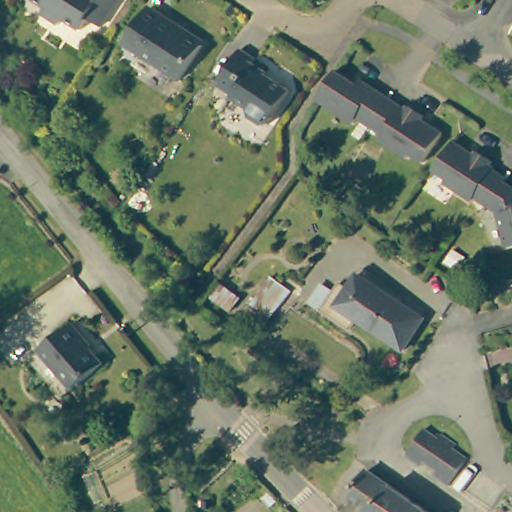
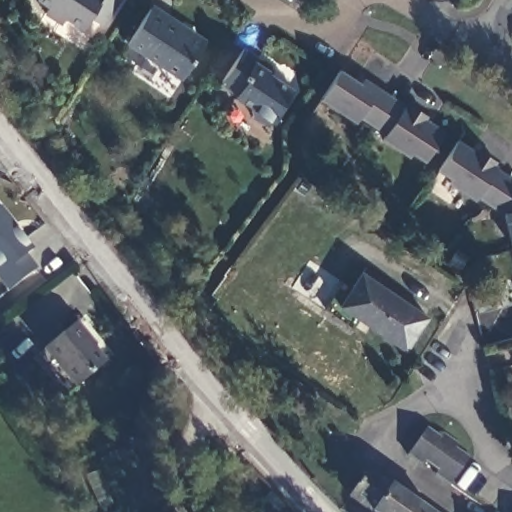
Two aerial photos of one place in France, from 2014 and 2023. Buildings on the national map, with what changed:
unchanged [(88,25),(81,34),(65,24),(61,29),(41,15),(45,9),(34,1),(35,0),(121,0),(99,31),(88,25)]
unchanged [(168,16),(171,14),(185,22),(182,26),(208,41),(185,77),(128,44),(152,7),(168,16)]
unchanged [(264,53),(262,56),(276,65),(275,69),(299,85),(274,125),(255,112),(257,107),(222,82),(248,44),(264,53)]
unchanged [(363,79),(367,74),(413,105),(416,101),(431,112),(428,116),(447,129),(426,157),(415,150),(411,155),(384,135),(388,129),(361,112),(356,117),(322,95),(337,75),(343,66),(363,79)]
unchanged [(489,149),(503,159),(500,163),(512,170),(512,232),(506,210),(484,193),(480,199),(451,180),(454,174),(445,166),(464,138),(485,151),(489,149)]
new [(25,255),(36,268),(7,291),(0,282),(0,208),(33,250),(25,255)]
unchanged [(434,318),(412,351),(368,317),(361,326),(334,306),(353,281),(361,285),(371,272),(434,318)]
unchanged [(38,355),(52,343),(83,318),(97,335),(94,338),(112,360),(83,382),(70,367),(57,377),(38,355)]
unchanged [(439,439),(442,435),(456,443),(453,450),(468,458),(450,485),(433,475),(439,469),(423,460),(419,465),(406,457),(424,431),(439,439)]
unchanged [(439,512),(378,512),(355,497),(371,469),(439,512)]

